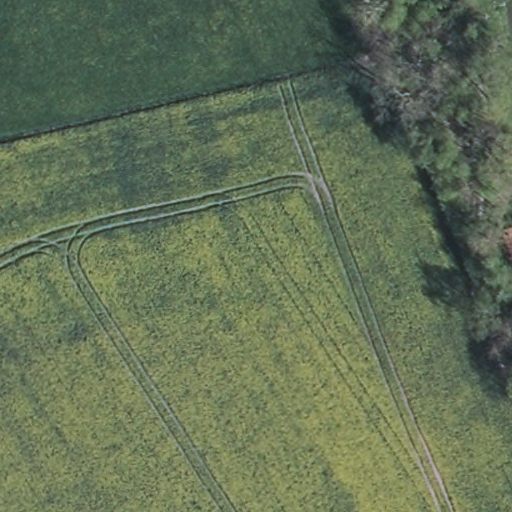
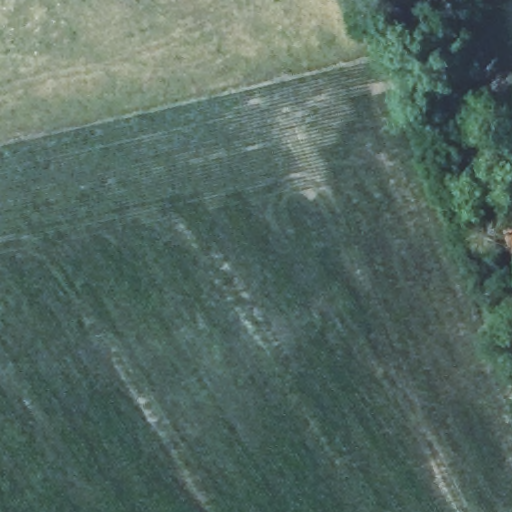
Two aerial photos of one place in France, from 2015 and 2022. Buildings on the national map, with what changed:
unchanged [(439,8),(445,15),(441,20),(435,12),(439,8)]
unchanged [(512,231),(512,254),(505,233),(512,231)]

